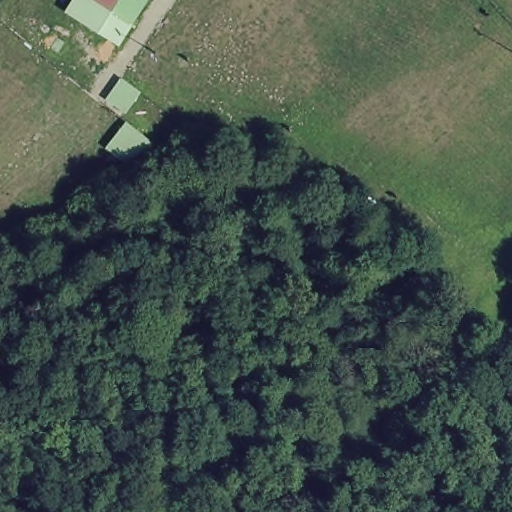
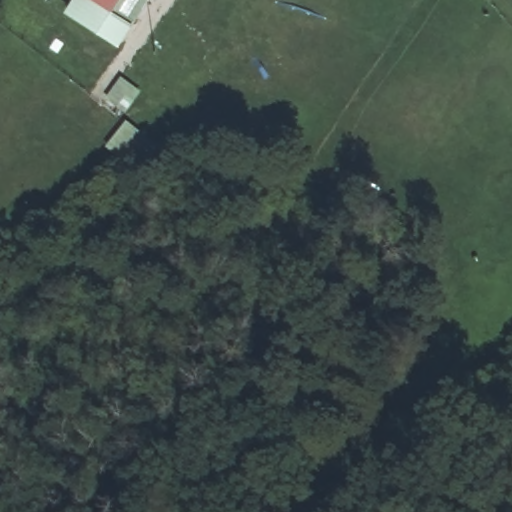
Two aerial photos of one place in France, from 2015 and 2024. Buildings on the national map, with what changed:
unchanged [(94,0),(142,0),(128,21),(94,0)]
unchanged [(126,118),(105,104),(124,77),(145,94),(126,118)]

